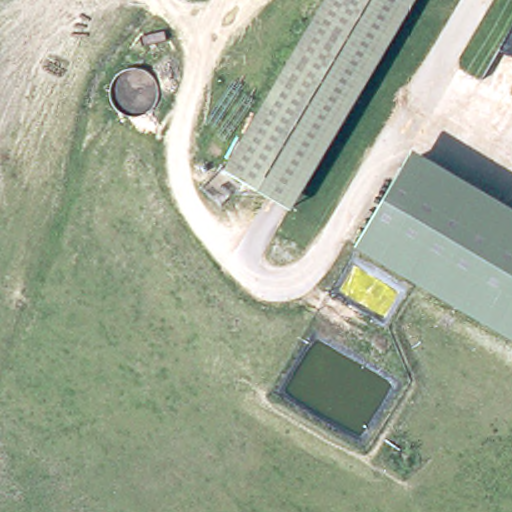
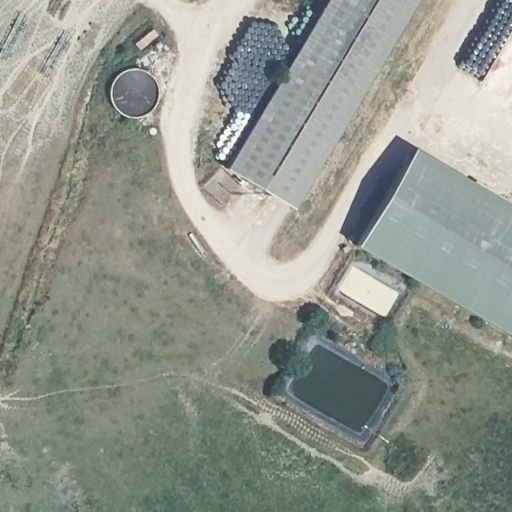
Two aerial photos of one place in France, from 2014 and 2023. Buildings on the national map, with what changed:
unchanged [(223,171),(325,0),(415,0),(290,210),(223,171)]
unchanged [(405,169),(415,152),(512,209),(512,339),(358,248),(405,169)]

